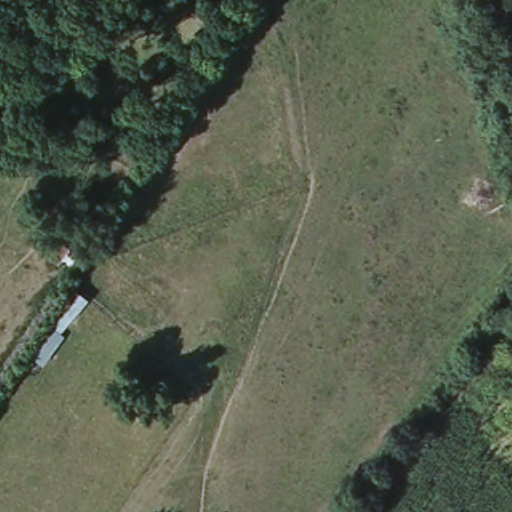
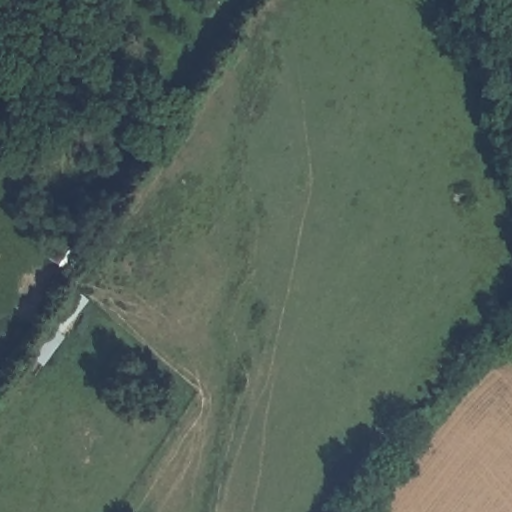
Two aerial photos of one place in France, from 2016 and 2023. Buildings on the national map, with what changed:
unchanged [(18,348),(60,280),(84,295),(39,360),(18,348)]

